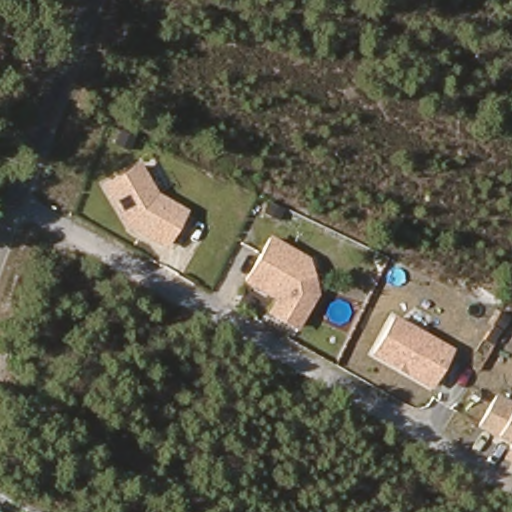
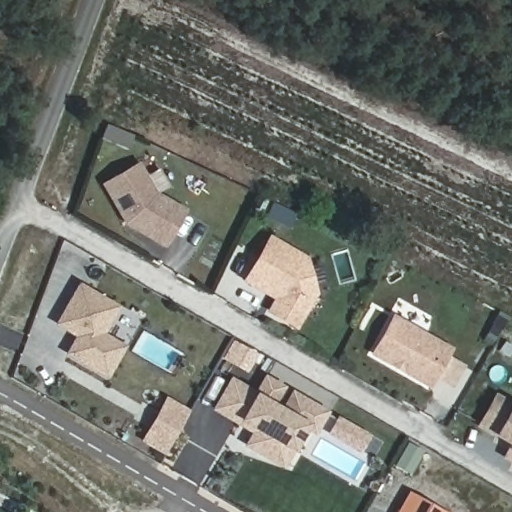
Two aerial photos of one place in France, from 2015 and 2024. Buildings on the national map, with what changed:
unchanged [(158,192),(189,209),(169,250),(129,227),(102,182),(141,162),(158,192)]
unchanged [(307,256),(319,292),(297,332),(265,313),(272,299),(244,282),(270,236),(307,256)]
new [(108,379),(65,355),(75,337),(55,325),(79,282),(121,306),(105,332),(127,345),(108,379)]
unchanged [(455,348),(433,388),(371,356),(393,314),(455,348)]
new [(249,374),(221,358),(233,339),(260,355),(249,374)]
new [(231,376),(255,390),(265,375),(285,387),(273,402),(282,407),(291,391),(328,411),(315,436),(305,431),(292,452),(285,468),(245,446),(250,433),(210,409),(231,376)]
new [(140,442),(166,396),(190,410),(165,456),(140,442)]
unchanged [(500,458),(503,454),(508,446),(476,426),(492,398),(512,410),(512,465),(500,458)]
new [(327,435),(337,416),(371,435),(360,453),(327,435)]
new [(445,512),(396,512),(408,491),(445,512)]

